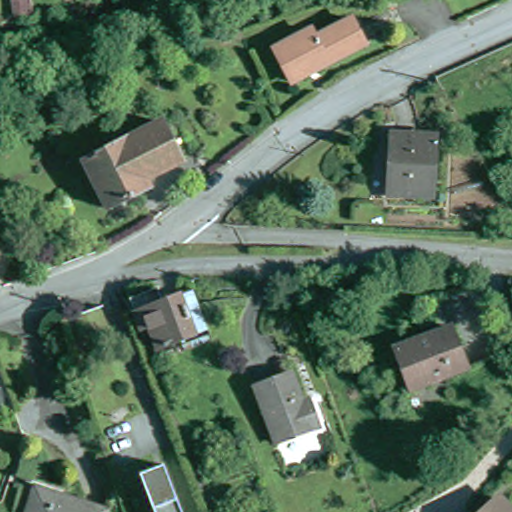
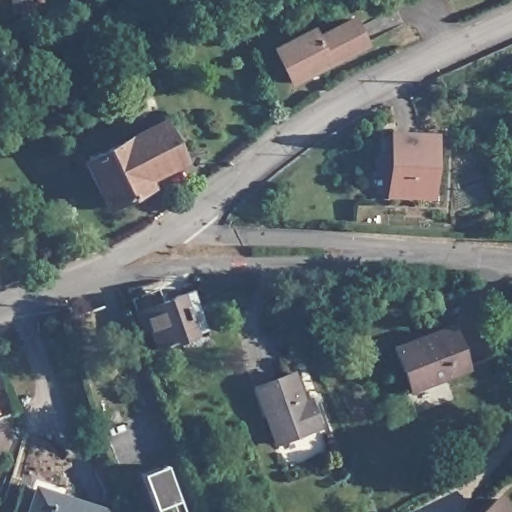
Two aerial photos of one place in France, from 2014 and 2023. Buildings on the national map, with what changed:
unchanged [(320,40),(357,21),(370,46),(299,84),(280,50),(316,32),(320,40)]
unchanged [(186,161),(180,164),(150,180),(155,187),(112,209),(89,163),(166,124),(186,161)]
unchanged [(439,143),(435,199),(397,196),(399,140),(439,143)]
unchanged [(160,360),(150,337),(143,340),(134,317),(170,302),(174,308),(195,300),(210,338),(160,360)]
unchanged [(103,347),(88,354),(75,327),(90,321),(103,347)]
unchanged [(449,330),(472,367),(420,399),(397,362),(449,330)]
unchanged [(286,447),(260,392),(297,374),(310,402),(316,401),(319,406),(328,427),(286,447)]
unchanged [(14,420),(2,425),(0,421),(0,395),(4,394),(14,420)]
unchanged [(141,483),(159,476),(165,473),(172,489),(181,512),(153,512),(141,483)]
unchanged [(30,507),(35,489),(99,512),(28,512),(30,507)]
unchanged [(498,503),(506,512),(489,512),(498,503)]

